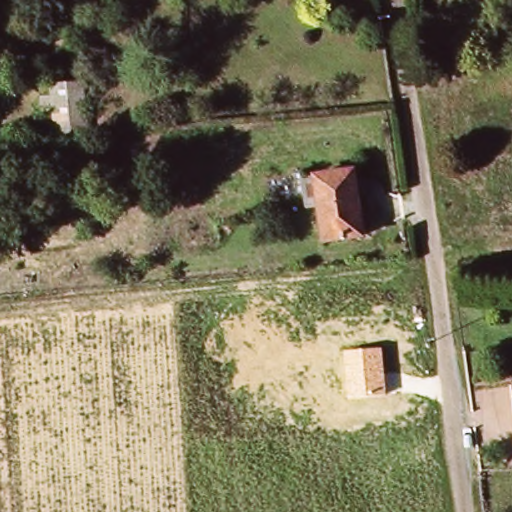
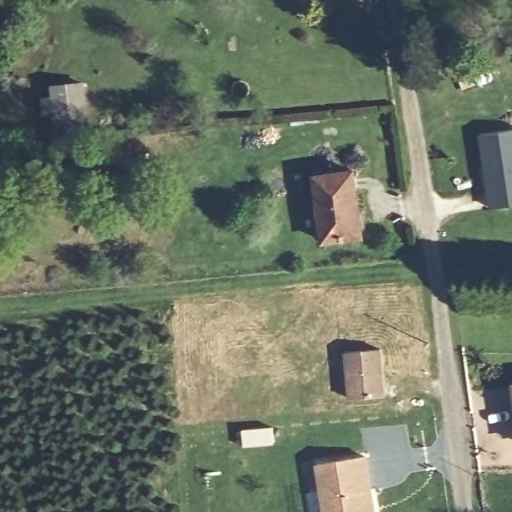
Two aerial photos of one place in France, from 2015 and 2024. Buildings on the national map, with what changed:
unchanged [(49,102),(49,87),(84,83),(89,120),(45,124),(41,103),(49,102)]
new [(512,129),(512,205),(488,208),(477,135),(512,129)]
unchanged [(369,234),(324,238),(314,175),(359,172),(369,234)]
unchanged [(386,395),(348,399),(344,352),(383,349),(386,395)]
new [(373,512),(324,512),(315,462),(363,454),(369,487),(373,512)]

